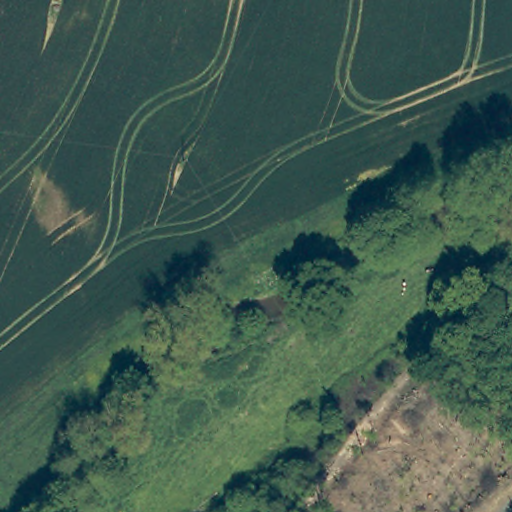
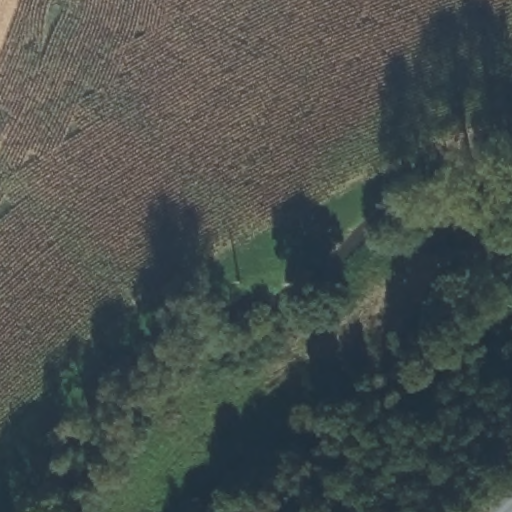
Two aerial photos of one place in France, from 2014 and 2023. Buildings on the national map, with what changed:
[]

